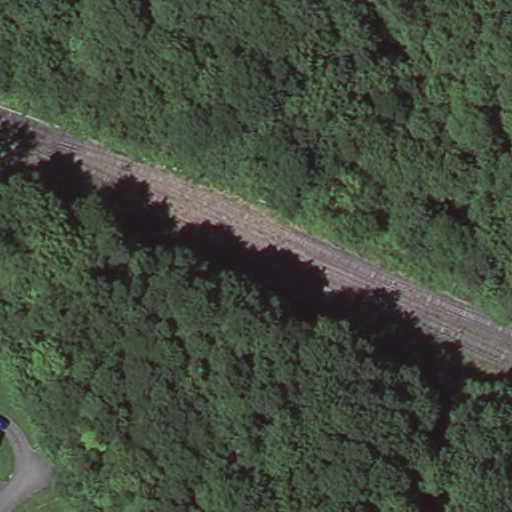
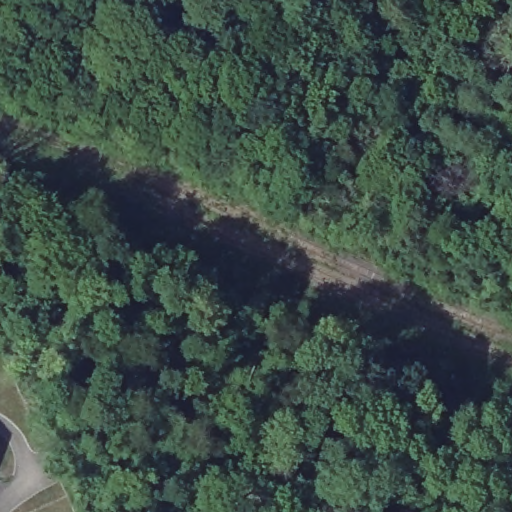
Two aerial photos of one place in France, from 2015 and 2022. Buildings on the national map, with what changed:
unchanged [(507,401),(505,408),(497,405),(501,397),(507,401)]
unchanged [(502,414),(497,424),(486,417),(492,407),(502,414)]

